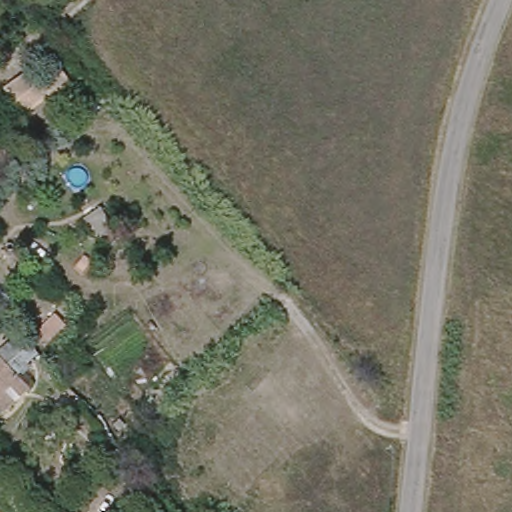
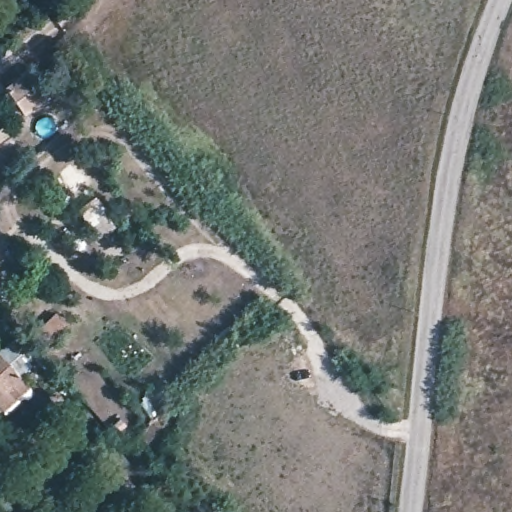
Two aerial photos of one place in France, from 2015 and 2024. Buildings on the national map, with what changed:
unchanged [(102,205),(114,226),(97,237),(84,216),(102,205)]
unchanged [(29,388),(0,412),(0,358),(29,388)]
unchanged [(117,472),(107,464),(115,457),(123,466),(117,472)]

